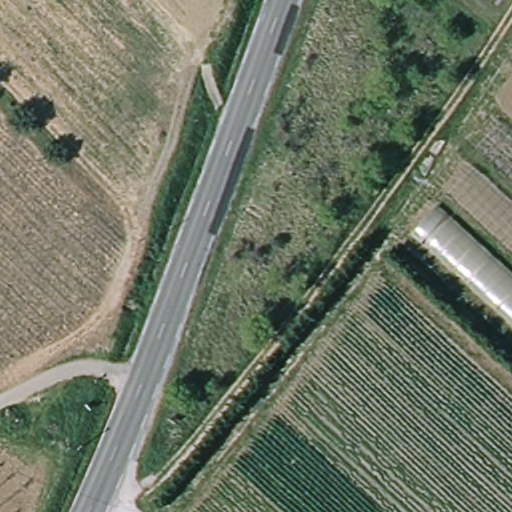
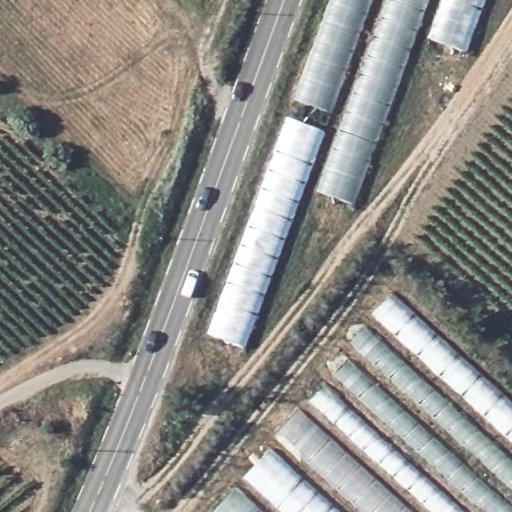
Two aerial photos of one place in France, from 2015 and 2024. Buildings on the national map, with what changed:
new [(467,53),(420,34),(353,207),(305,189),(245,349),(209,334),(331,0),(487,0),(467,53)]
demolished [(512,123),(512,323),(410,234),(506,117),(512,123)]
new [(512,402),(512,512),(432,512),(308,401),(392,293),(512,402)]
new [(413,512),(211,512),(297,410),(413,512)]

